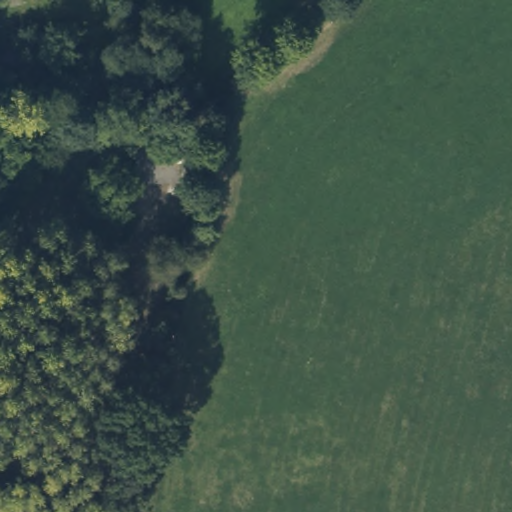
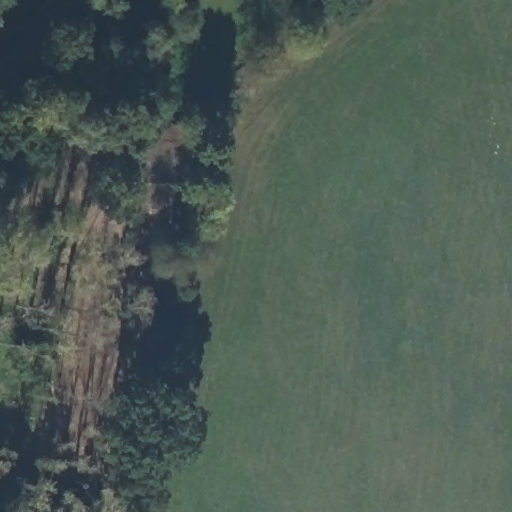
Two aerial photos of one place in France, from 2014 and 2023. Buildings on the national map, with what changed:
unchanged [(130,180),(134,128),(175,129),(175,135),(180,136),(178,183),(130,180)]

